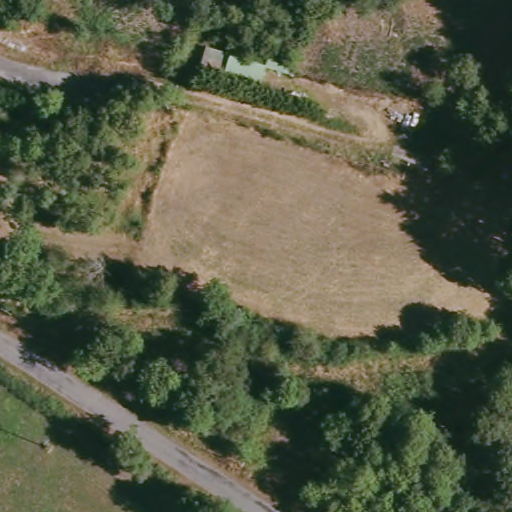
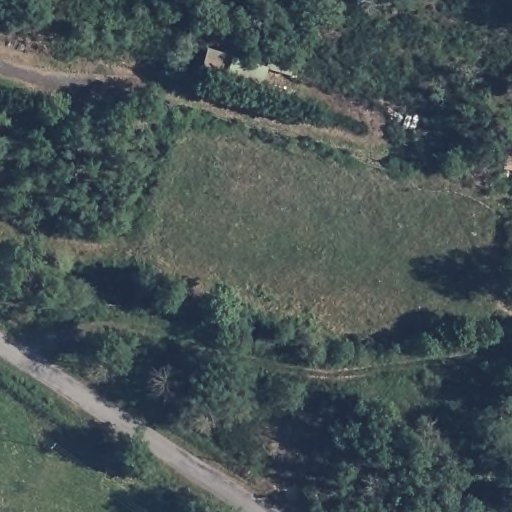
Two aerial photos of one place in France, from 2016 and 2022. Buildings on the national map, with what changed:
unchanged [(207,48),(235,56),(273,68),(267,94),(228,78),(203,70),(207,48)]

